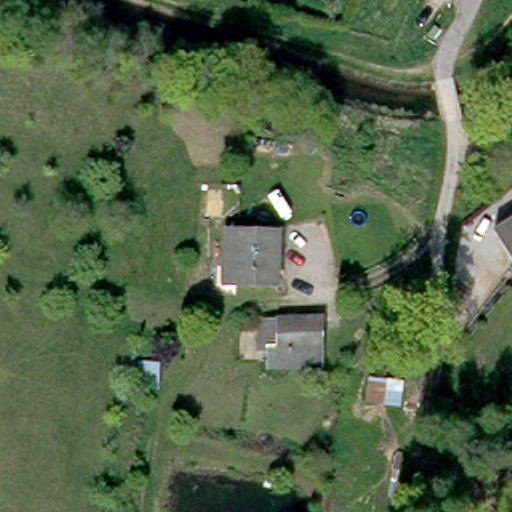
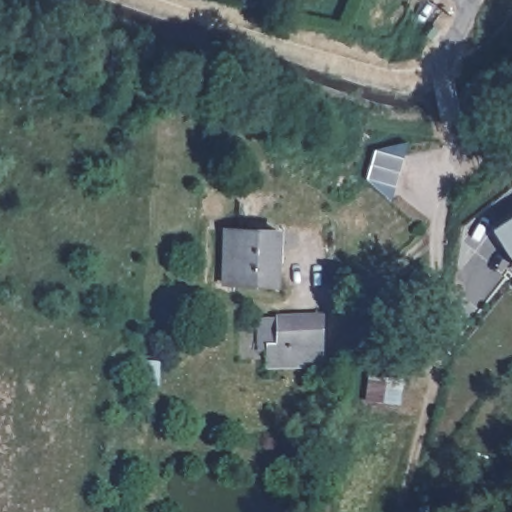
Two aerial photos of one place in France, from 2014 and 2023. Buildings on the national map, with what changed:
new [(375,150),(404,158),(396,187),(367,179),(375,150)]
unchanged [(502,217),(512,210),(512,254),(491,226),(502,217)]
unchanged [(225,254),(225,228),(280,229),(278,284),(225,282),(225,254)]
unchanged [(260,316),(322,316),(321,364),(271,364),(270,349),(260,348),(260,316)]

